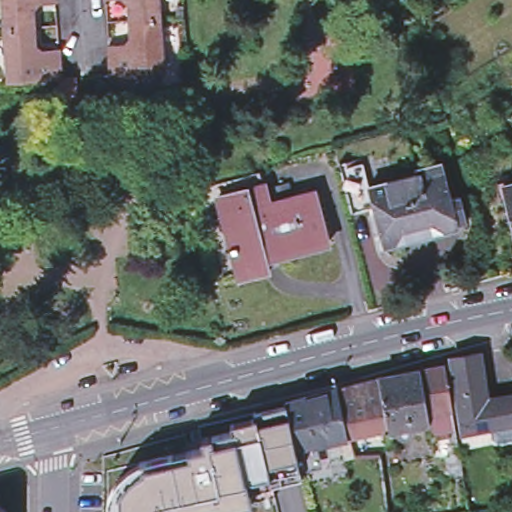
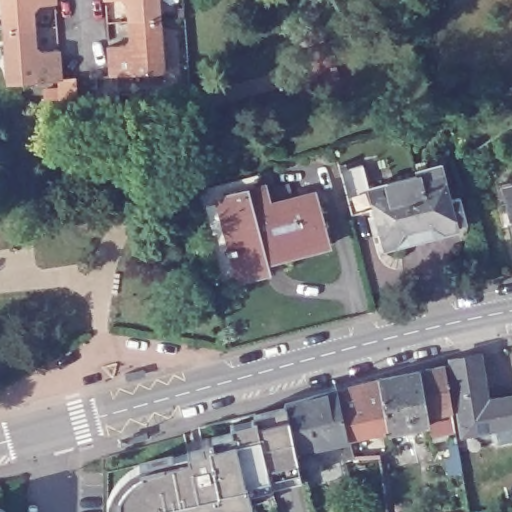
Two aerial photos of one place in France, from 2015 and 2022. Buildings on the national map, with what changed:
unchanged [(55,3),(55,4),(39,5),(32,12),(33,29),(4,31),(2,0),(54,0),(55,3)]
unchanged [(105,1),(104,0),(122,0),(105,1)]
unchanged [(127,5),(122,0),(157,0),(159,20),(129,22),(127,5)]
unchanged [(110,76),(108,47),(108,46),(125,45),(131,38),(129,22),(159,20),(163,73),(110,76)]
unchanged [(34,44),(42,51),(58,49),(59,50),(60,80),(7,83),(4,31),(33,29),(34,44)]
unchanged [(441,166),(457,229),(383,248),(367,184),(441,166)]
unchanged [(512,183),(512,244),(499,186),(512,183)]
unchanged [(257,186),(262,204),(309,193),(322,246),(264,260),(266,268),(232,277),(220,230),(226,229),(217,196),(257,186)]
unchanged [(498,437),(494,435),(492,423),(462,429),(450,359),(450,355),(480,349),(486,394),(512,390),(512,435),(498,437)]
unchanged [(135,466),(142,469),(187,458),(187,453),(202,452),(198,442),(230,435),(227,425),(253,416),(286,401),(285,397),(337,383),(377,374),(420,366),(444,361),(455,423),(457,437),(449,438),(447,424),(430,427),(429,418),(389,425),(387,423),(377,425),(348,430),(352,452),(342,453),(340,433),(317,439),(318,445),(296,450),(299,479),(246,490),(250,502),(218,512),(106,512),(106,502),(135,466)]
unchanged [(467,502),(469,512),(461,512),(460,503),(467,502)]
unchanged [(0,512),(0,510),(1,512),(0,512)]

